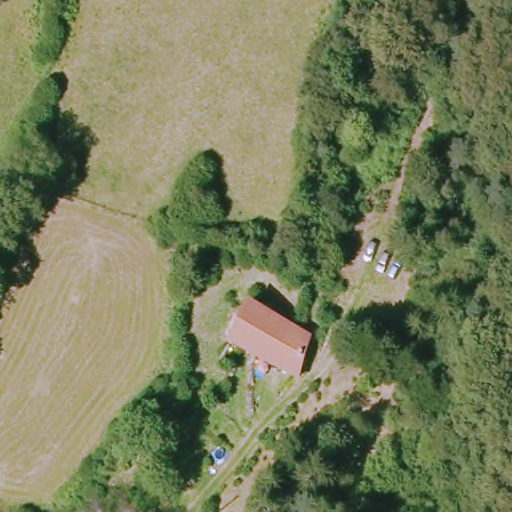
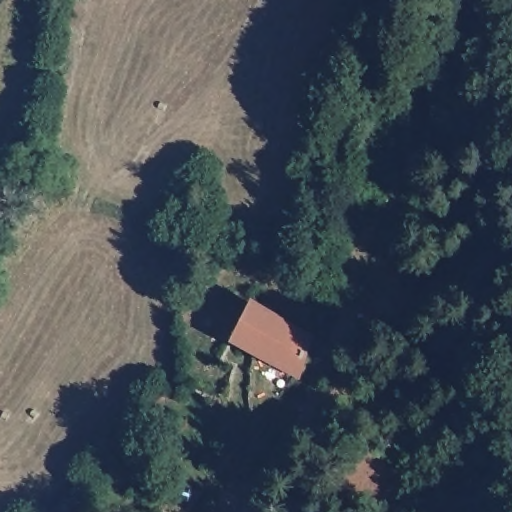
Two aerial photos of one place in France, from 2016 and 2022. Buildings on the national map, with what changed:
unchanged [(294,372),(228,338),(247,299),(309,336),(294,372)]

